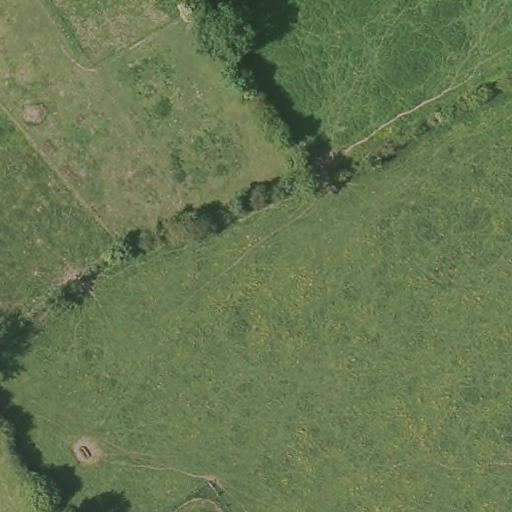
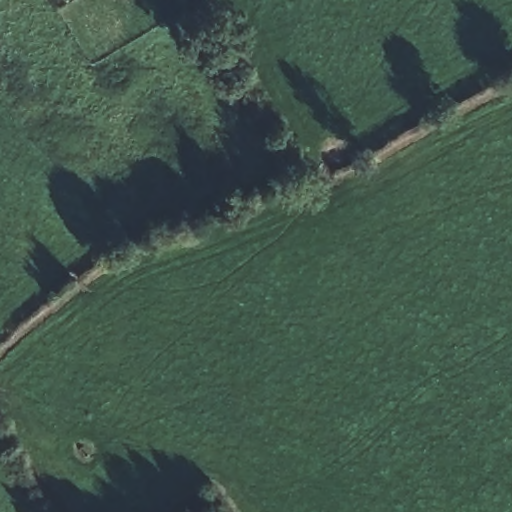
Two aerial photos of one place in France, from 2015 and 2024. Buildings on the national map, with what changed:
[]

